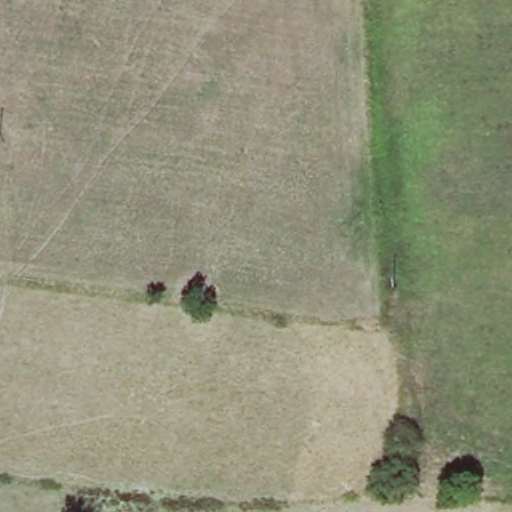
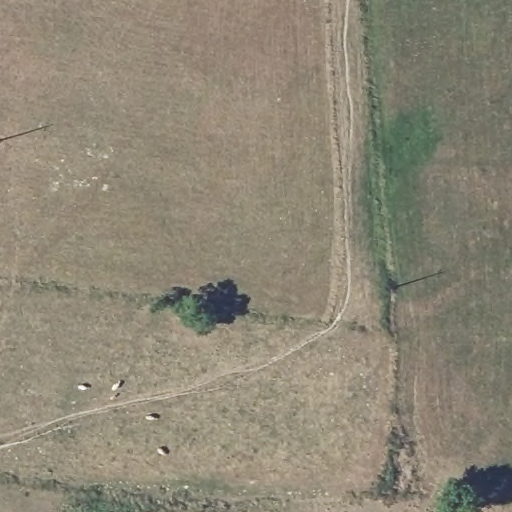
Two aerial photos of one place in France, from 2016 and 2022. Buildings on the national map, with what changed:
[]

